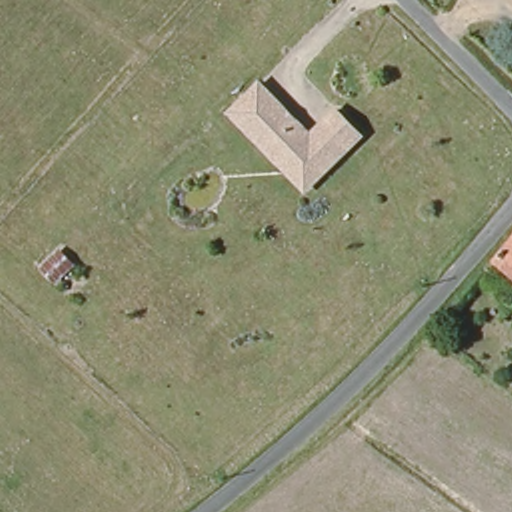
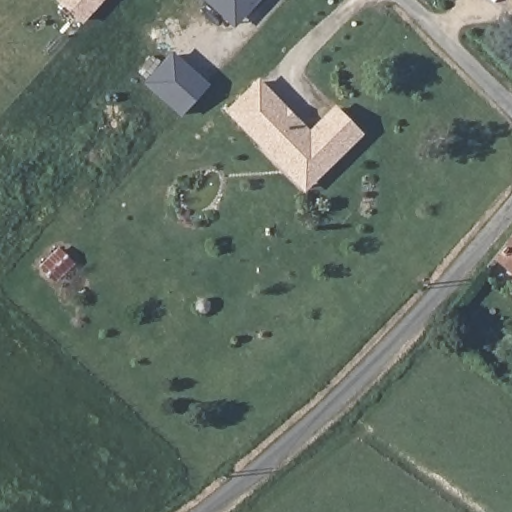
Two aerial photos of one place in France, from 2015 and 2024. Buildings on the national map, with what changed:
new [(83,20),(61,0),(102,0),(83,20)]
new [(233,27),(203,0),(258,0),(233,27)]
new [(171,50),(209,85),(181,116),(142,83),(171,50)]
unchanged [(280,160),(228,106),(257,77),(309,130),(333,105),(358,130),(325,162),(304,184),(280,160)]
unchanged [(496,262),(512,242),(512,276),(496,262)]

